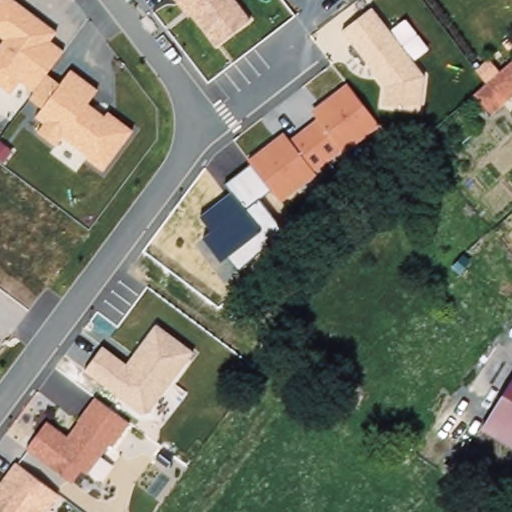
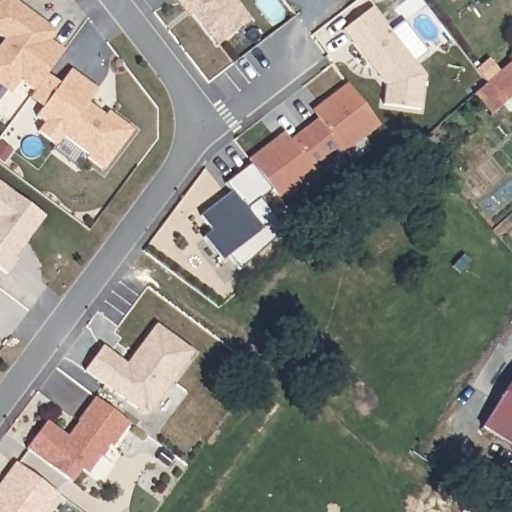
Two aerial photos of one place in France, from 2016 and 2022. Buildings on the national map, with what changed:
unchanged [(61,139),(55,146),(35,131),(41,124),(33,118),(40,108),(26,98),(31,90),(18,81),(10,92),(0,85),(0,42),(2,39),(0,38),(0,0),(14,0),(58,31),(50,41),(64,51),(48,74),(59,83),(69,70),(98,90),(89,102),(104,115),(108,110),(134,130),(104,170),(61,139)]
unchanged [(192,15),(188,17),(174,0),(235,0),(250,20),(217,45),(192,15)]
unchanged [(381,105),(383,85),(342,31),(372,9),(424,76),(419,110),(381,105)]
unchanged [(512,62),(512,98),(493,115),(476,95),(512,62)]
unchanged [(342,154),(339,150),(313,171),(316,175),(279,203),(269,190),(259,199),(284,232),(237,271),(225,256),(220,261),(202,238),(209,231),(197,216),(229,190),(224,183),(249,162),(247,158),(283,131),(292,140),(316,119),(311,110),(345,81),(379,125),(342,154)]
new [(0,181),(45,214),(7,273),(0,268),(0,181)]
unchanged [(149,413),(139,414),(81,371),(101,345),(125,361),(154,325),(194,353),(149,413)]
unchanged [(483,430),(512,379),(512,448),(483,430)]
unchanged [(110,449),(108,445),(87,475),(79,469),(71,481),(24,450),(46,420),(66,435),(94,396),(130,423),(110,449)]
unchanged [(0,479),(13,461),(60,496),(47,512),(0,512),(0,479)]

